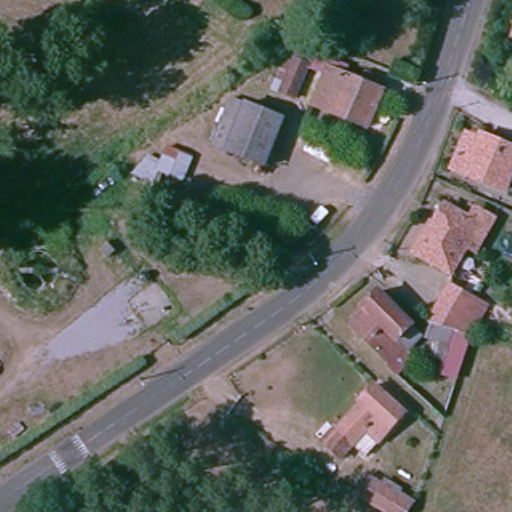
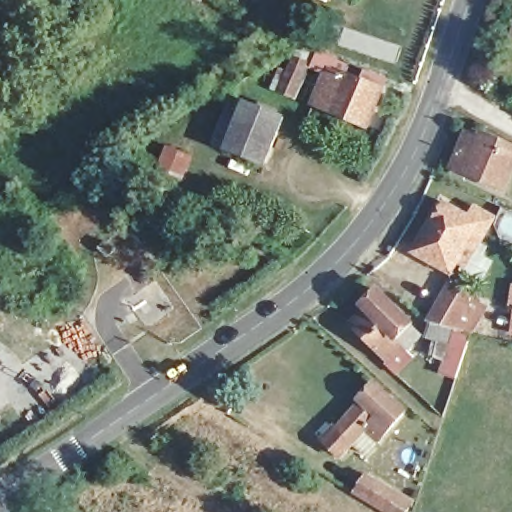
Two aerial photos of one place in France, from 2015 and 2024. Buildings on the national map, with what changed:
unchanged [(277,68),(288,70),(294,55),(310,60),(314,51),(350,63),(347,72),(383,90),(373,133),(315,107),(324,78),(312,69),(299,100),(270,90),(277,68)]
unchanged [(281,116),(263,161),(217,142),(234,97),(281,116)]
unchanged [(512,143),(512,174),(507,187),(470,171),(468,177),(457,172),(469,140),(473,132),(483,137),(486,132),(512,143)]
unchanged [(437,223),(441,226),(450,209),(474,222),(480,212),(497,221),(482,249),(472,245),(456,275),(420,256),(437,223)]
unchanged [(432,322),(446,284),(473,298),(456,330),(432,322)]
unchanged [(388,361),(381,353),(351,323),(366,309),(362,304),(378,289),(411,322),(396,338),(402,347),(388,361)]
unchanged [(432,322),(456,330),(473,298),(480,301),(489,305),(486,314),(494,320),(491,335),(475,332),(461,382),(444,380),(448,357),(425,347),(432,322)]
unchanged [(341,429),(342,430),(366,405),(365,403),(379,387),(409,416),(383,443),(370,431),(341,462),(324,446),(341,429)]
unchanged [(367,474),(411,501),(404,512),(389,512),(357,492),(367,474)]

